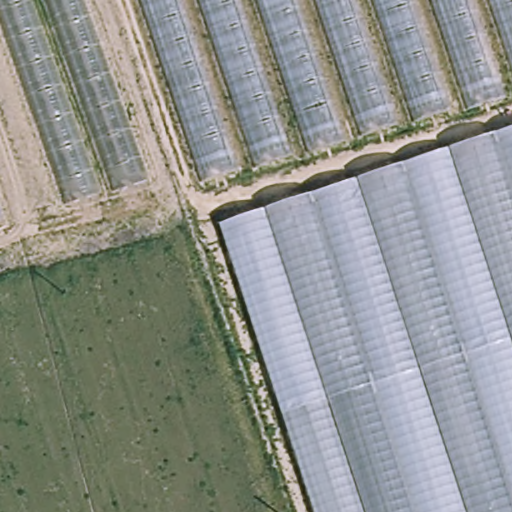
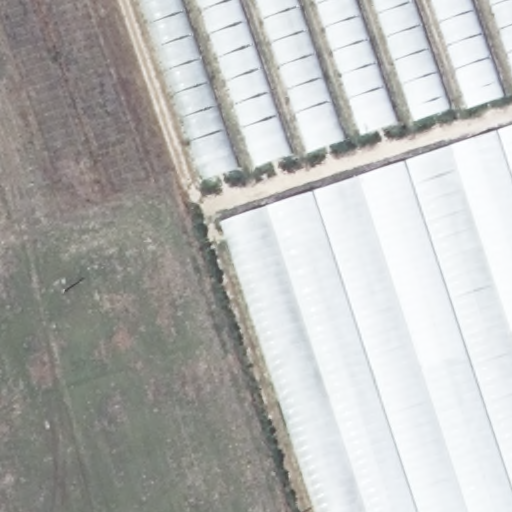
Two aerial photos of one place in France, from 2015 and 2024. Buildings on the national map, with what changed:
demolished [(0,221),(0,0),(79,0),(144,180),(0,221)]
unchanged [(512,0),(512,93),(202,173),(142,0),(512,0)]
unchanged [(512,117),(512,512),(315,512),(216,213),(512,117)]

